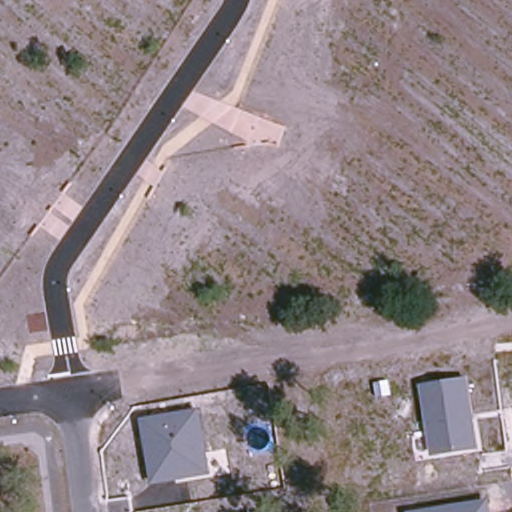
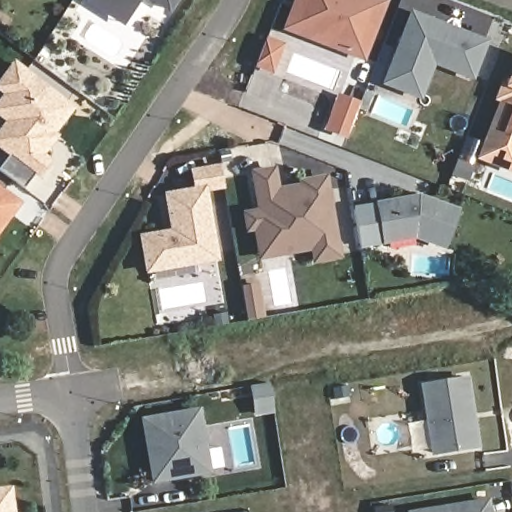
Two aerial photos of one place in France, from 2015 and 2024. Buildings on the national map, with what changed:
new [(86,2),(88,0),(140,0),(125,27),(86,2)]
new [(149,0),(178,0),(170,13),(149,0)]
new [(280,31),(292,0),(389,0),(365,63),(280,31)]
new [(473,81),(435,66),(421,100),(382,84),(410,10),(489,40),(473,81)]
new [(60,134),(45,154),(52,160),(38,179),(0,149),(0,128),(5,122),(0,119),(0,96),(1,95),(0,94),(0,77),(14,59),(76,107),(56,132),(60,134)]
new [(475,158),(497,102),(492,101),(500,83),(505,85),(512,65),(512,172),(475,158)]
new [(144,274),(138,234),(168,229),(161,192),(192,187),(189,169),(220,164),(224,190),(206,192),(218,261),(144,274)]
new [(311,263),(309,252),(258,261),(252,232),(245,234),(241,211),(255,209),(248,170),(275,166),(279,187),(297,184),(296,180),(327,175),(341,258),(311,263)]
new [(0,186),(21,202),(0,231),(0,186)]
new [(445,250),(415,240),(382,246),(381,242),(360,245),(354,208),(375,205),(375,201),(419,194),(459,208),(445,250)]
unchanged [(431,457),(420,383),(470,376),(482,449),(431,457)]
unchanged [(212,476),(151,484),(141,418),(203,409),(212,476)]
new [(0,487),(11,486),(15,512),(0,512),(0,487)]
unchanged [(405,511),(490,499),(492,512),(405,512),(405,511)]

